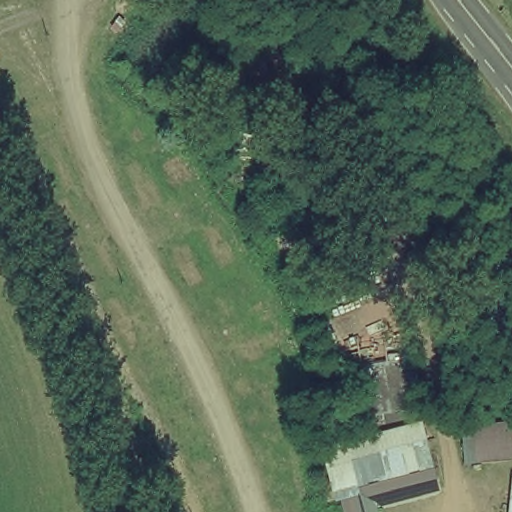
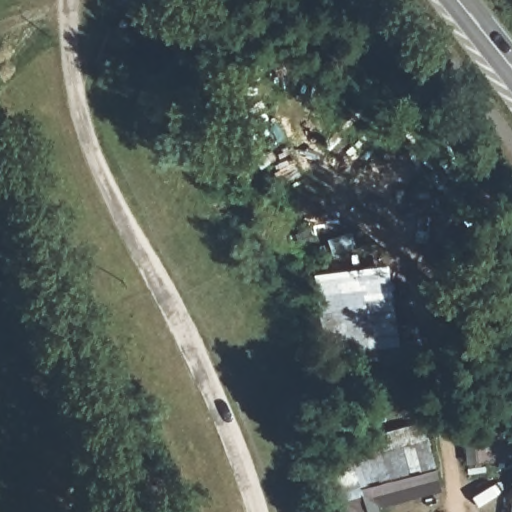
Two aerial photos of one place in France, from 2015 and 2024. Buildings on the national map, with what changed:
new [(388,262),(399,346),(328,353),(327,348),(317,313),(312,275),(388,262)]
unchanged [(512,424),(512,466),(480,470),(474,428),(512,424)]
unchanged [(443,485),(369,503),(371,512),(347,512),(344,502),(362,497),(353,462),(432,442),(443,485)]

